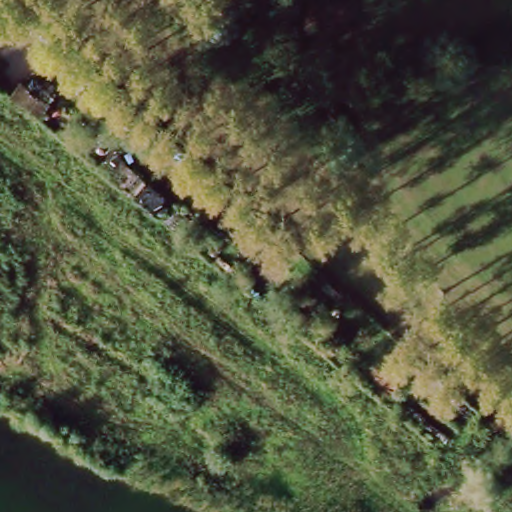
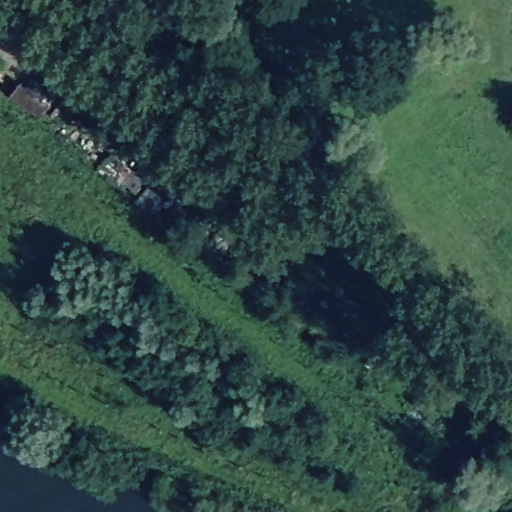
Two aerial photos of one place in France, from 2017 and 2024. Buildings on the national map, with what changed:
unchanged [(17,73),(46,95),(35,110),(6,87),(17,73)]

